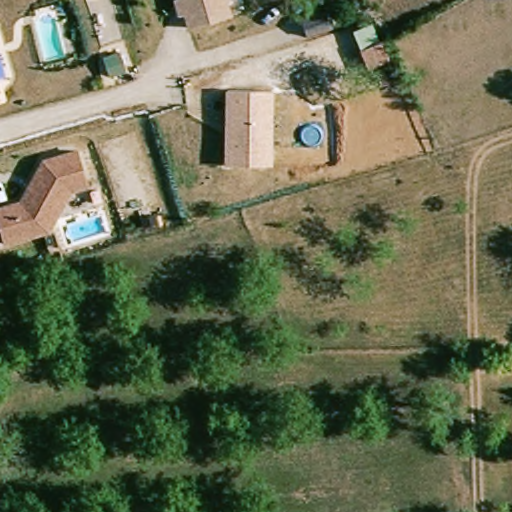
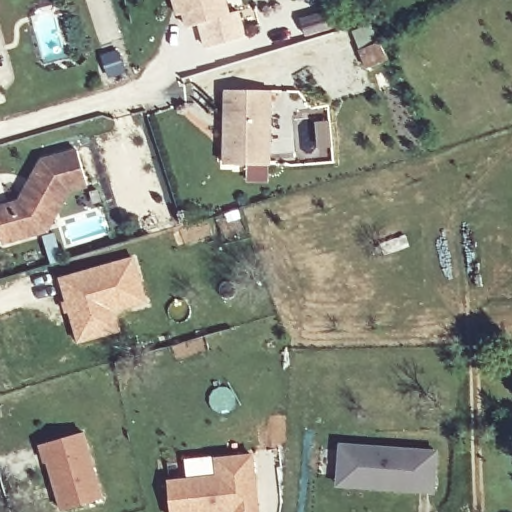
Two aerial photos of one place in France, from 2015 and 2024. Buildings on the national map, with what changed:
unchanged [(230,13),(191,25),(183,0),(226,0),(230,13)]
new [(326,15),(333,36),(309,45),(302,21),(326,15)]
new [(369,70),(361,50),(353,29),(371,24),(382,41),(389,60),(369,70)]
unchanged [(0,91),(0,83),(2,90),(0,91)]
unchanged [(274,89),(270,164),(225,163),(227,87),(274,89)]
unchanged [(40,158),(80,147),(90,187),(70,193),(52,231),(5,246),(0,227),(0,205),(20,200),(40,158)]
new [(135,255),(149,305),(118,314),(122,332),(75,344),(57,277),(135,255)]
new [(85,433),(105,500),(65,512),(50,463),(48,463),(42,445),(85,433)]
new [(341,445),(437,453),(435,492),(380,489),(338,486),(339,481),(341,445)]
new [(219,460),(254,457),(260,512),(174,512),(170,483),(220,478),(219,460)]

